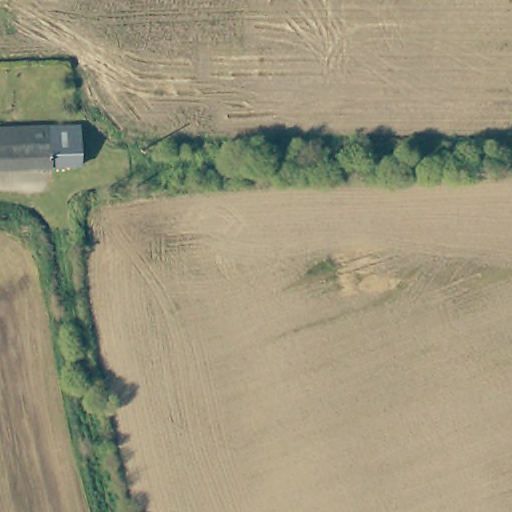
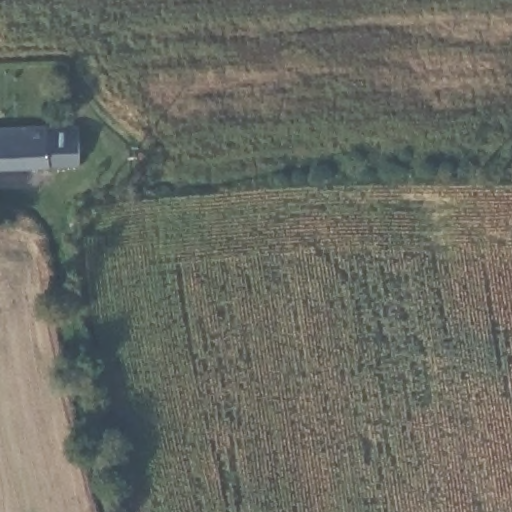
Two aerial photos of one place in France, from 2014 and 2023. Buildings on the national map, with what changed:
unchanged [(81,167),(0,170),(0,129),(77,126),(81,167)]

